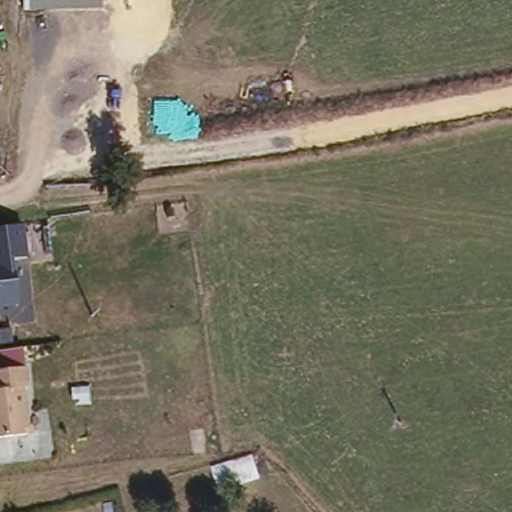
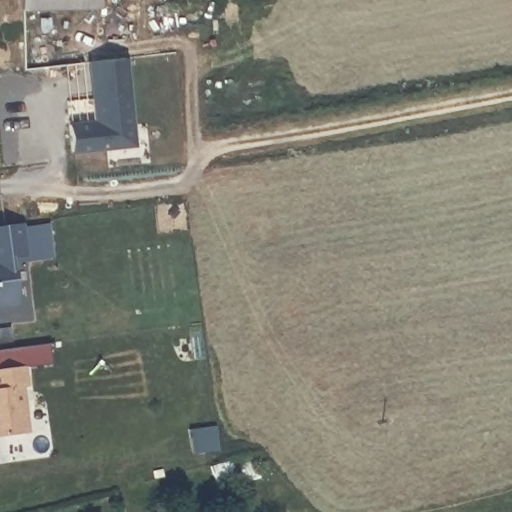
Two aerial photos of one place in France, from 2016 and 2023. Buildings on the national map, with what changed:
unchanged [(49,4),(29,6),(29,0),(49,0),(49,4)]
unchanged [(49,4),(49,0),(99,0),(99,1),(49,4)]
new [(74,152),(69,121),(93,119),(88,62),(130,58),(137,145),(74,152)]
unchanged [(23,221),(27,256),(12,260),(17,302),(0,304),(0,225),(23,221)]
unchanged [(51,343),(53,365),(25,368),(27,385),(22,386),(28,434),(0,439),(0,349),(22,347),(51,343)]

